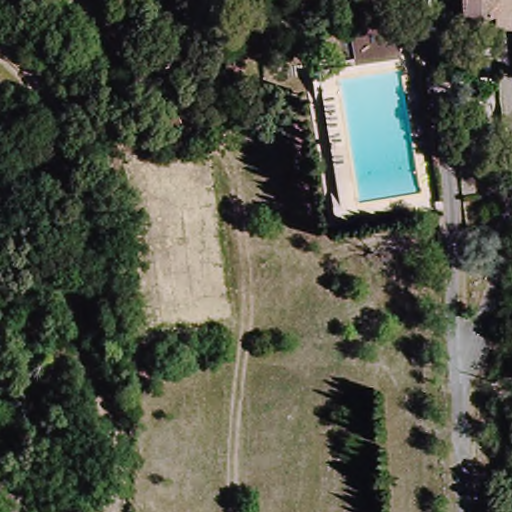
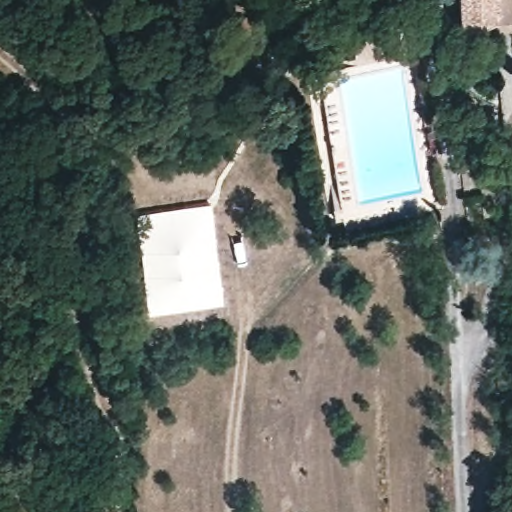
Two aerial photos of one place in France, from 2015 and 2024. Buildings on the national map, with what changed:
unchanged [(500,16),(468,25),(466,0),(500,0),(500,16)]
new [(224,303),(147,315),(135,212),(211,205),(224,303)]

